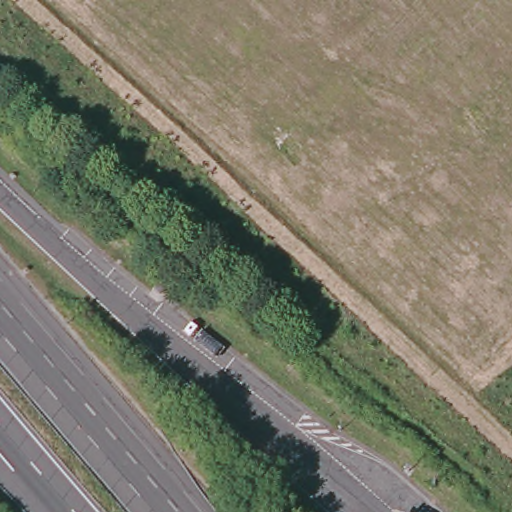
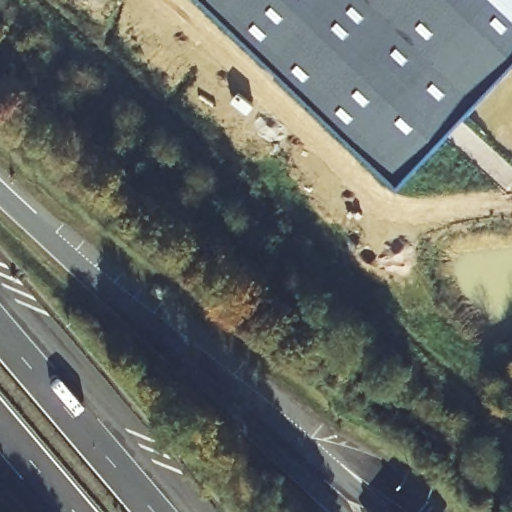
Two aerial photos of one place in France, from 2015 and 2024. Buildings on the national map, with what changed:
new [(402,176),(213,0),(512,0),(512,61),(402,176)]

